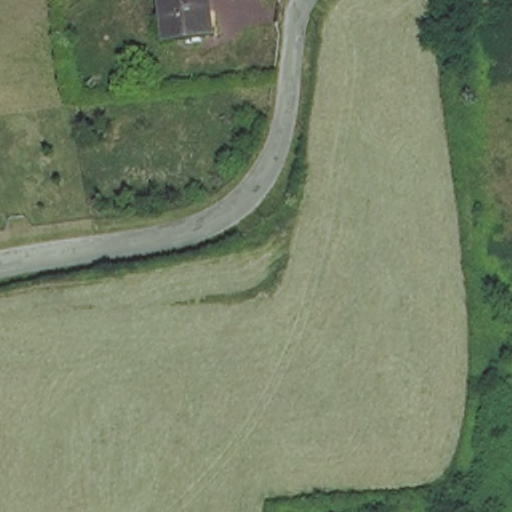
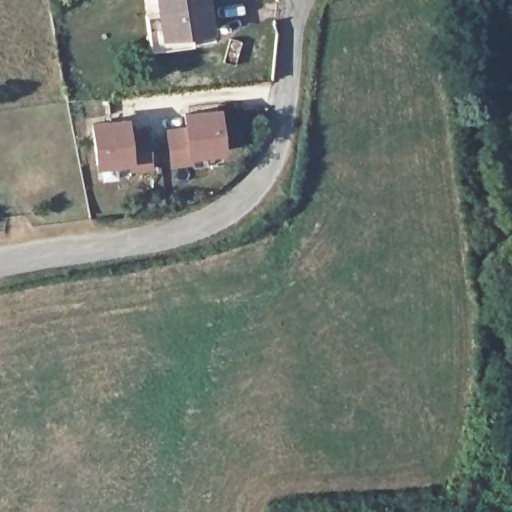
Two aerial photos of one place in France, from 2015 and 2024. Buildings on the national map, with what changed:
unchanged [(161,35),(159,0),(203,0),(208,32),(161,35)]
new [(184,126),(182,111),(220,107),(225,154),(191,157),(193,164),(169,166),(165,128),(184,126)]
new [(153,169),(130,171),(128,164),(95,168),(89,121),(129,117),(130,132),(148,129),(153,169)]

